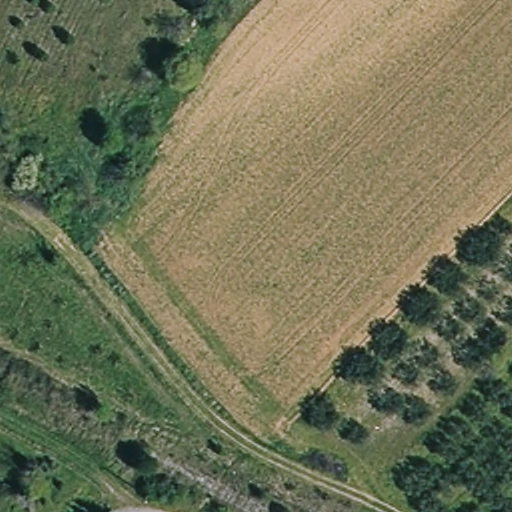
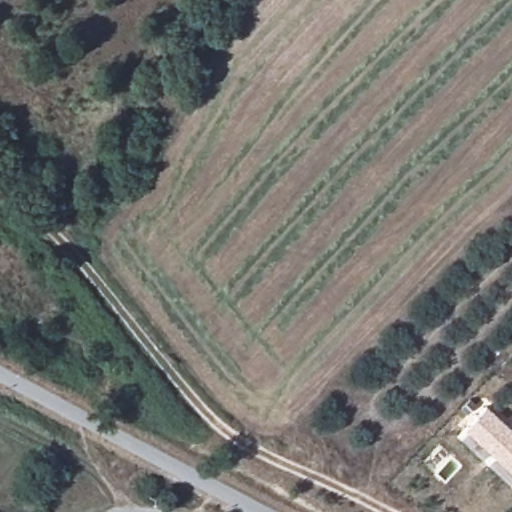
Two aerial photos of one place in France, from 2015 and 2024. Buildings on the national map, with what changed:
new [(486,405),(512,429),(512,472),(465,428),(486,405)]

